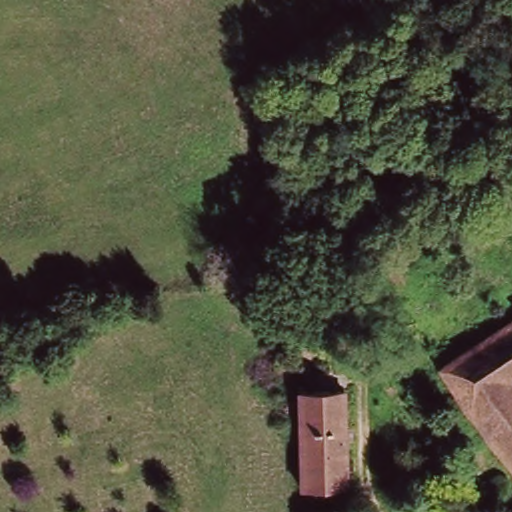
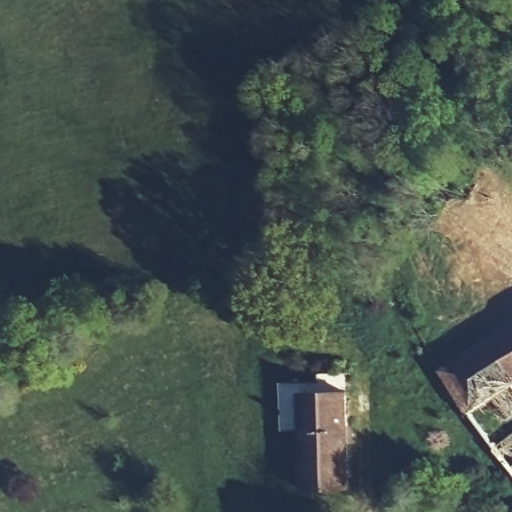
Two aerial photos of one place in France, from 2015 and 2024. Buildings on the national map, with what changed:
unchanged [(464,406),(438,370),(512,319),(512,379),(467,410),(464,406)]
unchanged [(512,379),(512,470),(467,410),(512,379)]
unchanged [(304,491),(299,395),(344,393),(348,489),(304,491)]

